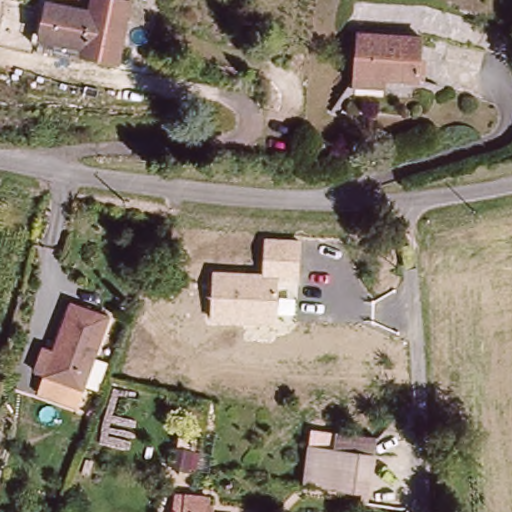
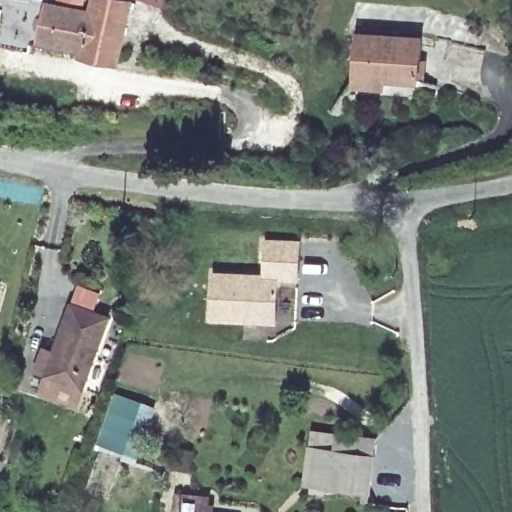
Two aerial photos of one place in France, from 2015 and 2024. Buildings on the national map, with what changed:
unchanged [(111,70),(79,59),(83,49),(43,34),(55,2),(92,15),(97,4),(130,15),(111,70)]
unchanged [(420,42),(418,82),(354,79),(357,39),(420,42)]
unchanged [(301,241),(299,280),(280,280),(278,327),(210,323),(213,272),(264,273),(265,240),(301,241)]
unchanged [(47,353),(55,356),(74,310),(113,326),(86,394),(39,375),(47,353)]
new [(157,402),(137,458),(95,444),(116,387),(157,402)]
unchanged [(305,482),(312,442),(336,446),(338,431),(378,437),(376,452),(370,492),(368,502),(361,501),(363,492),(305,482)]
new [(210,496),(210,503),(214,503),(214,512),(173,512),(176,492),(210,496)]
demolished [(193,512),(178,512),(179,511),(193,512)]

